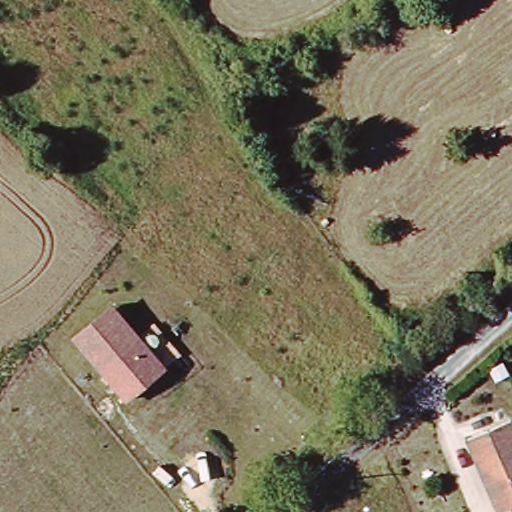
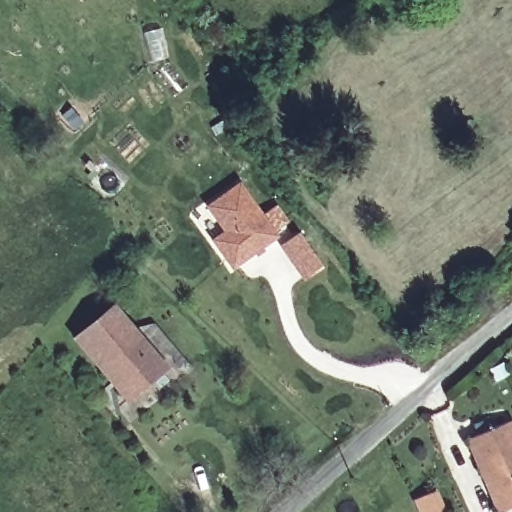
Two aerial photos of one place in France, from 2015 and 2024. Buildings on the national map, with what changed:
new [(238,180),(262,212),(275,202),(290,222),(278,235),(232,270),(210,238),(220,230),(204,205),(238,180)]
new [(297,230),(322,265),(303,280),(277,245),(297,230)]
unchanged [(167,367),(127,403),(71,336),(112,302),(167,367)]
unchanged [(503,512),(471,439),(512,424),(512,508),(503,512)]

